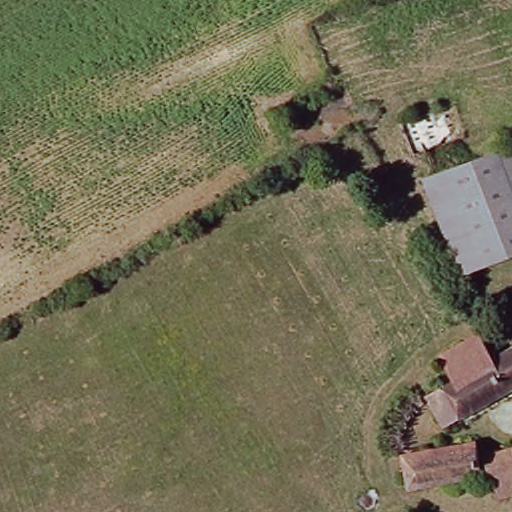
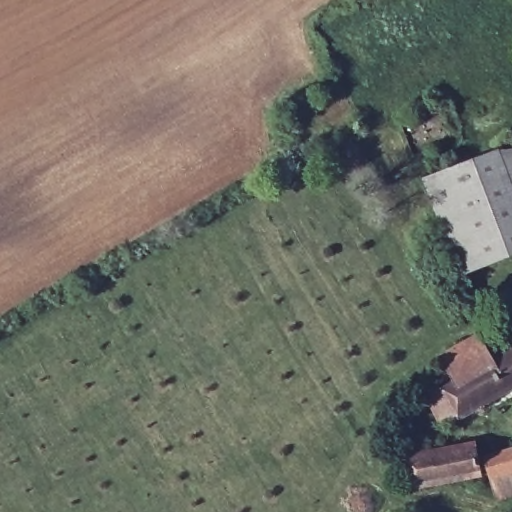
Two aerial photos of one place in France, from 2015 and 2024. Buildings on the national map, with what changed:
unchanged [(496,145),(512,143),(512,196),(496,145)]
unchanged [(512,196),(512,240),(465,255),(436,164),(496,145),(512,196)]
unchanged [(446,430),(429,398),(456,383),(443,359),(481,338),(493,360),(512,349),(512,392),(446,430)]
unchanged [(409,491),(404,461),(478,446),(483,462),(486,477),(409,491)]
unchanged [(512,451),(512,498),(501,503),(483,462),(512,451)]

